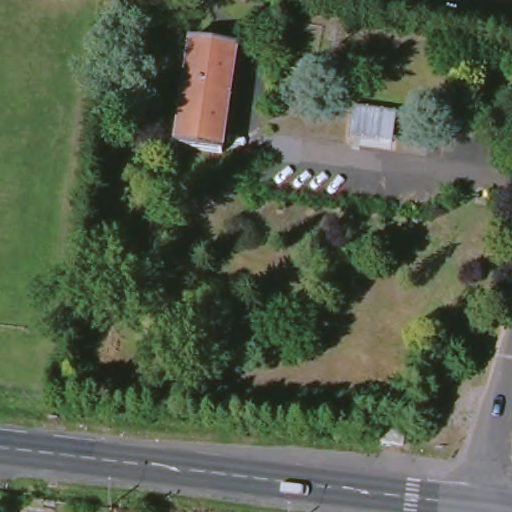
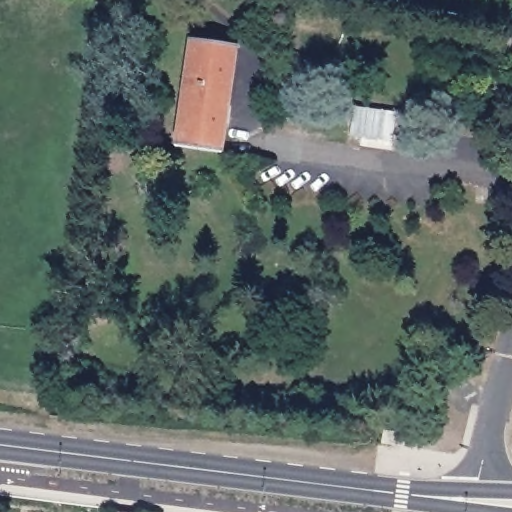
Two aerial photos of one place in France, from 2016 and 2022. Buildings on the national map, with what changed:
unchanged [(179,145),(192,38),(237,45),(224,151),(179,145)]
unchanged [(137,512),(119,512),(119,510),(137,512)]

